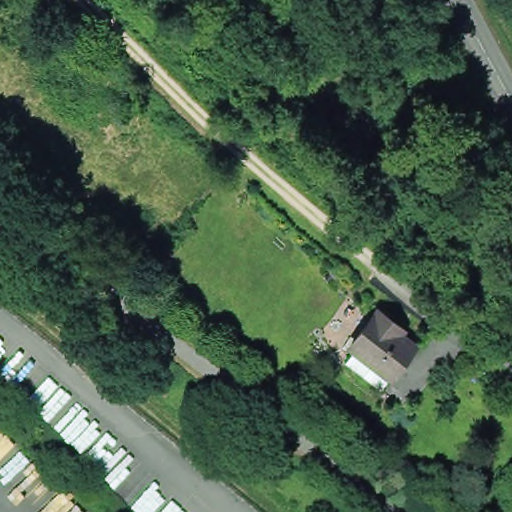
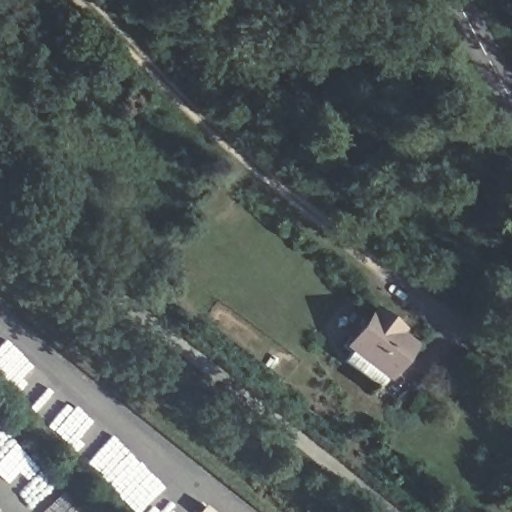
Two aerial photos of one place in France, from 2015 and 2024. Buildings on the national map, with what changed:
unchanged [(351,353),(360,343),(356,340),(386,307),(396,317),(408,326),(405,330),(419,343),(392,372),(383,382),(351,353)]

